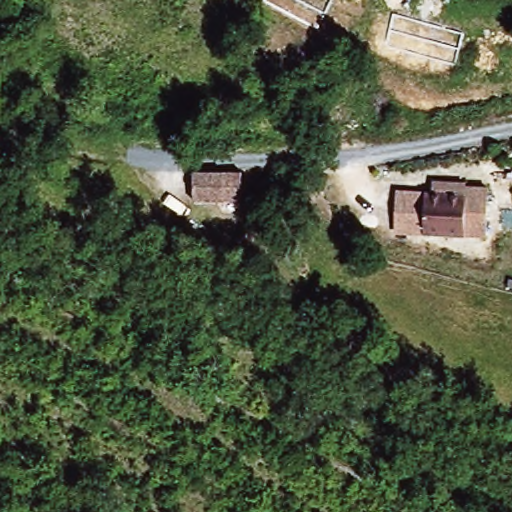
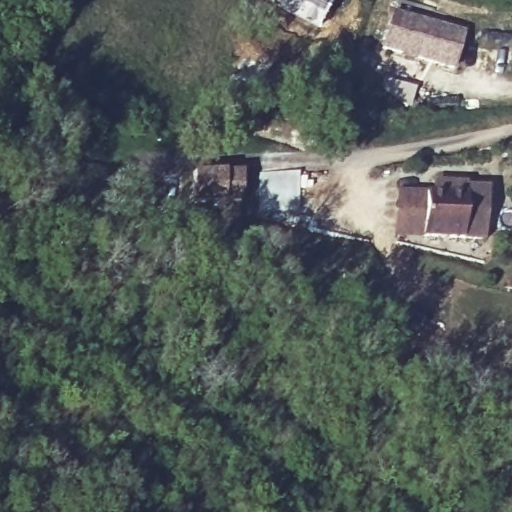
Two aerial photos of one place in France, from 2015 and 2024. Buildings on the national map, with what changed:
new [(464,32),(454,70),(380,47),(390,12),(464,32)]
unchanged [(240,188),(241,197),(231,199),(191,202),(189,172),(217,173),(239,174),(240,188)]
unchanged [(479,239),(415,235),(417,195),(425,195),(426,185),(457,185),(457,189),(481,190),(479,239)]
unchanged [(389,234),(391,194),(417,195),(415,235),(389,234)]

